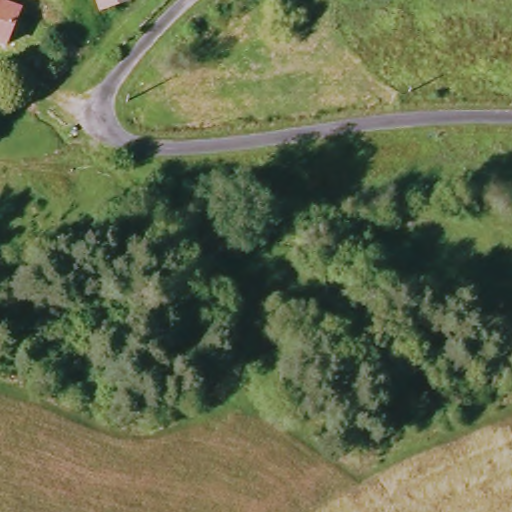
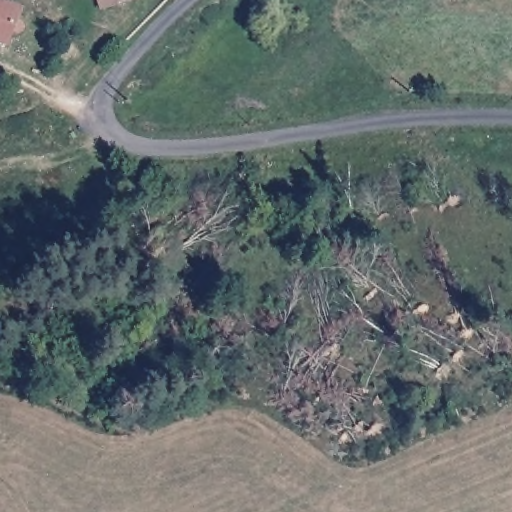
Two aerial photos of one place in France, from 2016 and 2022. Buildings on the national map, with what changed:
unchanged [(94,0),(123,0),(97,9),(94,0)]
unchanged [(17,13),(12,24),(19,28),(16,36),(11,36),(5,49),(0,47),(0,7),(17,13)]

